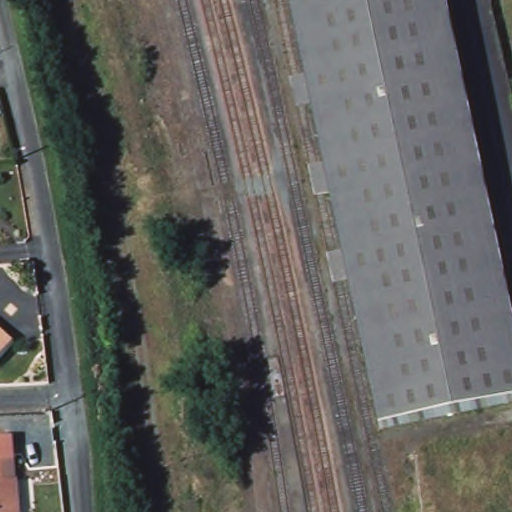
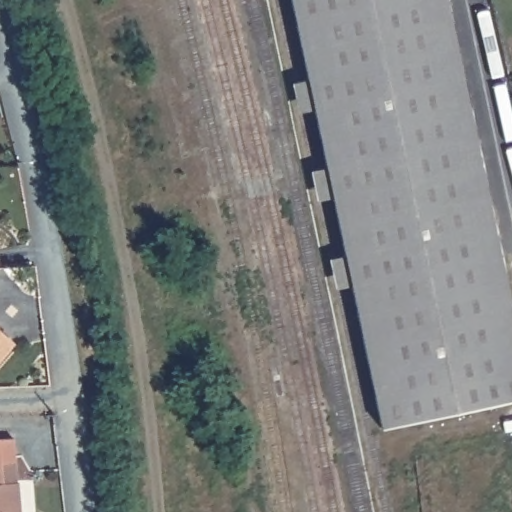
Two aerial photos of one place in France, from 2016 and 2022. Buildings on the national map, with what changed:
unchanged [(512,301),(512,404),(384,430),(296,0),(451,0),(512,301)]
unchanged [(0,364),(0,332),(13,340),(0,364)]
unchanged [(18,483),(20,512),(0,512),(0,439),(13,438),(18,483)]

